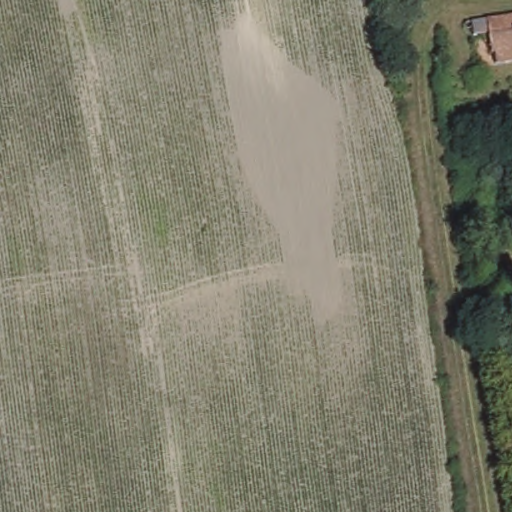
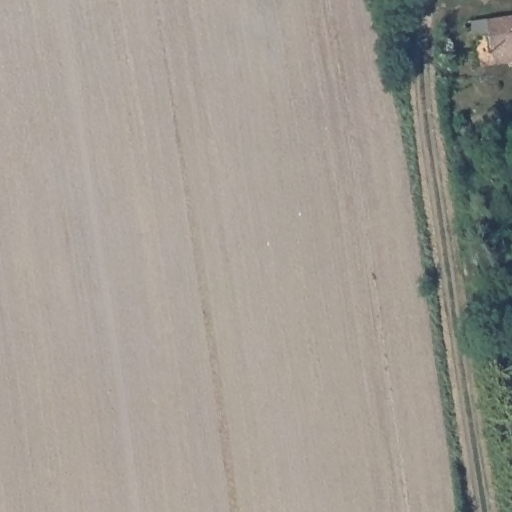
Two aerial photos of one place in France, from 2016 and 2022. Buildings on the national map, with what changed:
unchanged [(505,46),(482,49),(479,31),(462,33),(460,22),(512,15),(512,58),(506,58),(505,46)]

